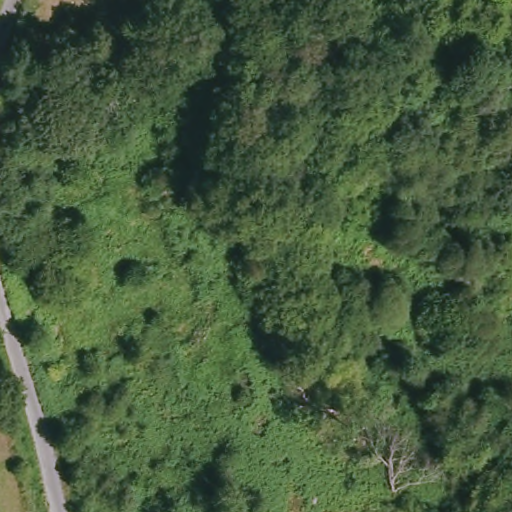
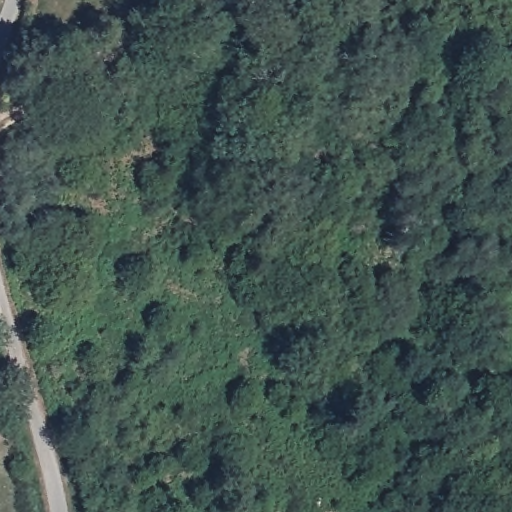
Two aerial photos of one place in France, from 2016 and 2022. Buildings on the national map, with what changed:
[]

